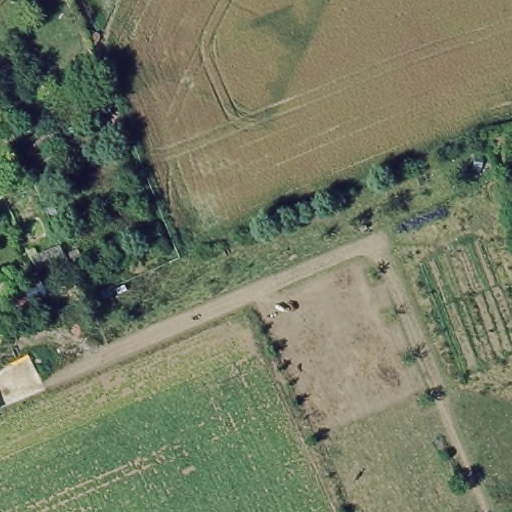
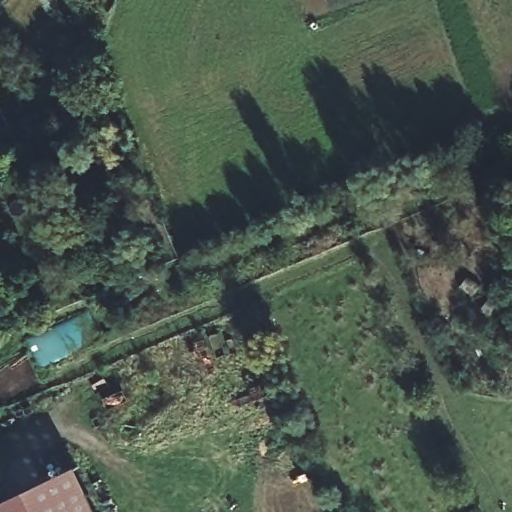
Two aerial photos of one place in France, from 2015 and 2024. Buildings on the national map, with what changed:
new [(0,504),(79,465),(100,512),(0,512),(0,504)]

